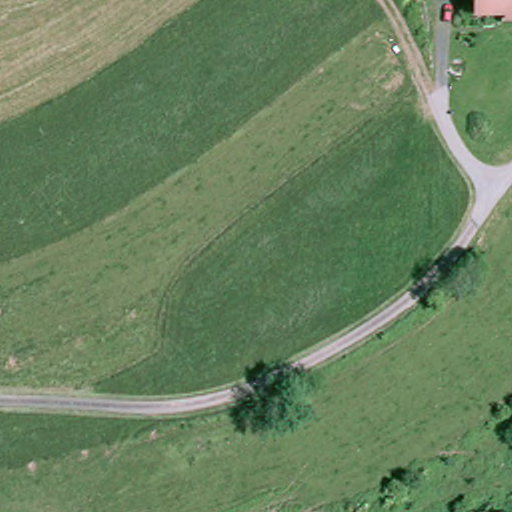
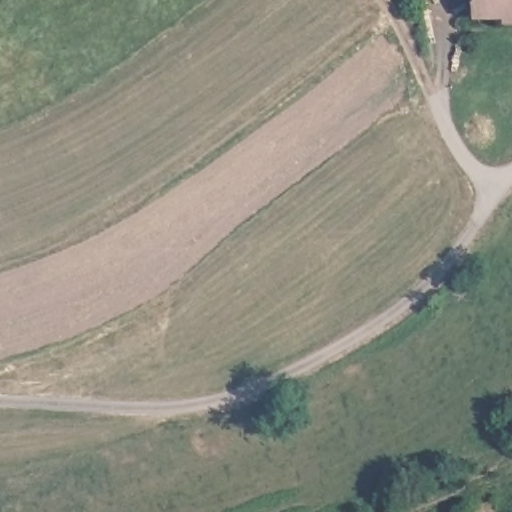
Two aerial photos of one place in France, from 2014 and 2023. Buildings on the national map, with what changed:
unchanged [(511,17),(510,11),(481,12),(481,0),(512,0),(512,17),(511,17)]

